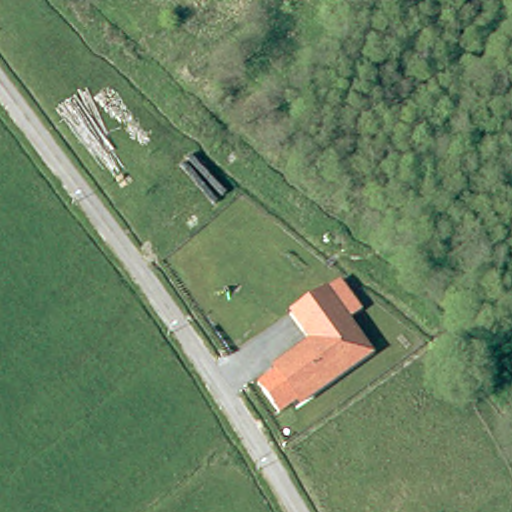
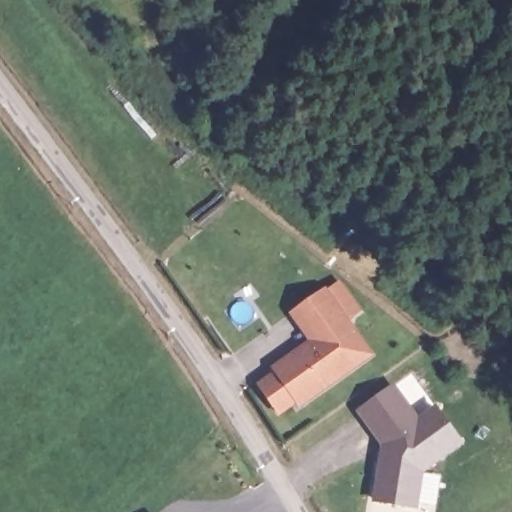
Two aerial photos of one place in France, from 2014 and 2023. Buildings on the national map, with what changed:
unchanged [(308,340),(289,311),(328,286),(375,355),(301,407),(273,365),(308,340)]
new [(394,385),(418,420),(434,409),(458,445),(418,470),(411,505),(371,497),(378,463),(384,459),(387,448),(359,408),(394,385)]
new [(159,512),(151,512),(156,508),(159,512)]

